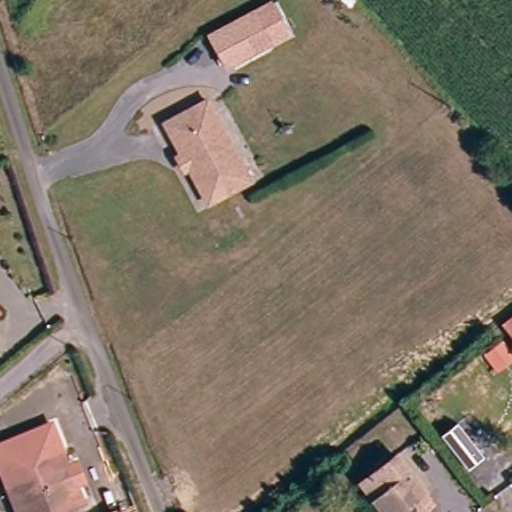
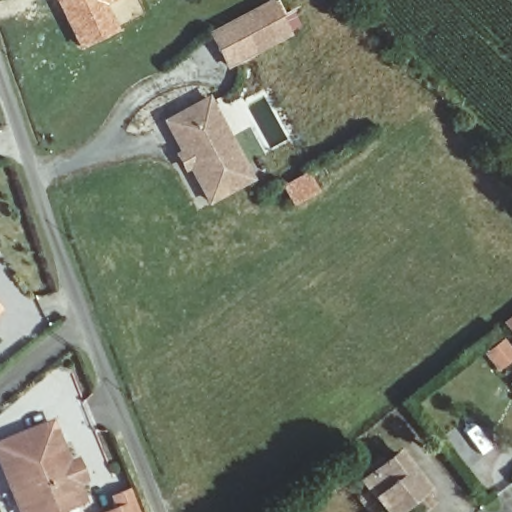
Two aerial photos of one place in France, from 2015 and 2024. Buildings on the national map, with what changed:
new [(108,7),(118,30),(78,50),(53,0),(122,0),(108,7)]
unchanged [(211,57),(203,42),(265,10),(281,40),(264,50),(220,74),(211,57)]
unchanged [(178,159),(183,155),(166,124),(209,102),(252,182),(211,204),(191,170),(186,173),(178,159)]
new [(501,324),(512,315),(512,337),(501,324)]
unchanged [(59,512),(18,512),(0,471),(0,442),(42,426),(79,505),(59,512)]
unchanged [(418,497),(427,506),(419,512),(410,512),(404,506),(396,512),(377,512),(359,490),(396,460),(422,494),(418,497)]
new [(110,497),(131,489),(139,512),(109,512),(115,510),(110,497)]

